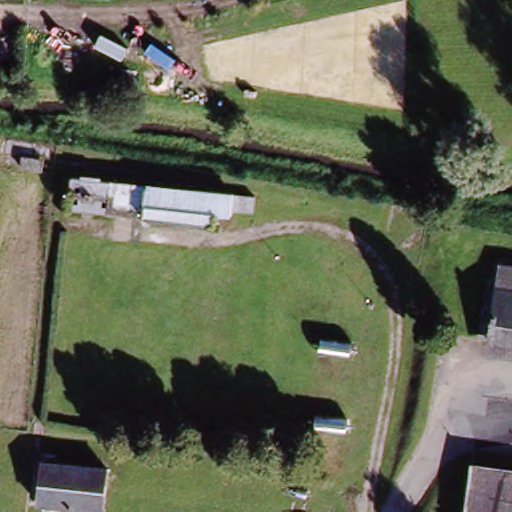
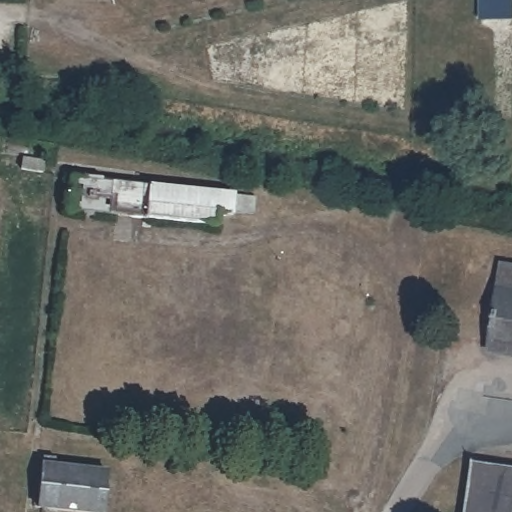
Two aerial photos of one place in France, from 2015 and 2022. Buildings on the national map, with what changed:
new [(478,0),(512,0),(512,22),(478,22),(478,0)]
unchanged [(27,156),(50,158),(48,171),(26,168),(27,156)]
unchanged [(222,232),(76,214),(80,182),(226,200),(222,232)]
unchanged [(492,357),(503,280),(512,281),(512,359),(492,357)]
unchanged [(54,512),(41,511),(46,467),(47,460),(59,461),(58,468),(110,474),(107,512),(54,512)]
unchanged [(512,471),(512,512),(469,512),(475,466),(512,471)]

